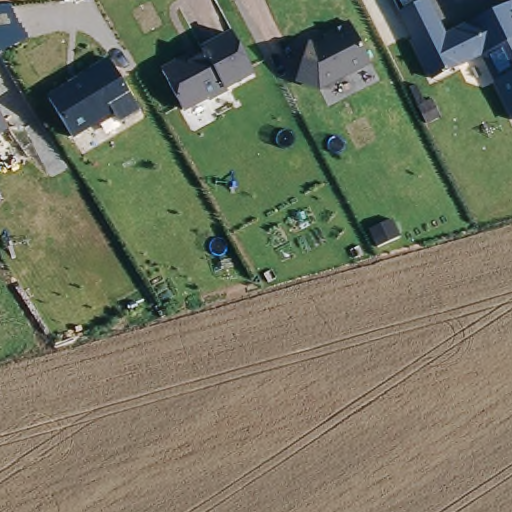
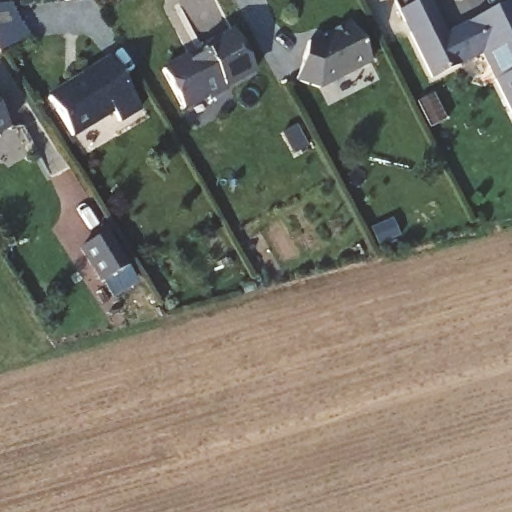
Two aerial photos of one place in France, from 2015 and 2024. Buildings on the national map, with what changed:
unchanged [(398,11),(420,0),(431,0),(446,33),(512,2),(512,112),(483,54),(430,78),(398,11)]
unchanged [(29,37),(0,51),(0,5),(8,4),(29,37)]
unchanged [(317,42),(350,22),(372,64),(329,86),(297,81),(310,39),(317,42)]
unchanged [(183,57),(185,61),(202,51),(200,47),(233,32),(255,74),(228,89),(230,92),(211,102),(208,99),(185,111),(163,70),(183,57)]
unchanged [(140,112),(120,122),(122,126),(108,133),(102,123),(70,139),(44,95),(110,59),(140,112)]
unchanged [(0,133),(0,114),(8,128),(0,133)]
new [(100,283),(80,250),(105,232),(126,267),(137,284),(112,298),(100,283)]

